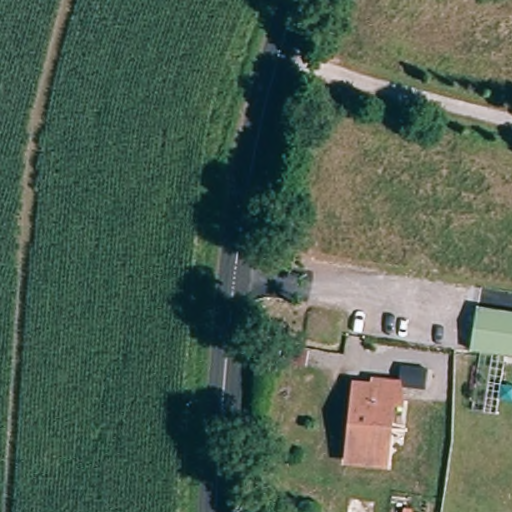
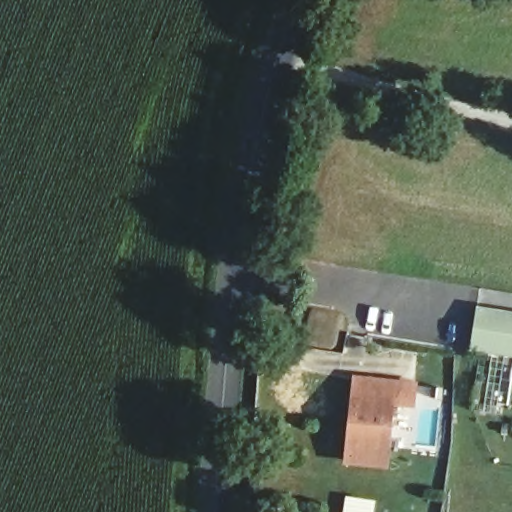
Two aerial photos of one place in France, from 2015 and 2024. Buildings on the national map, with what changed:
unchanged [(512,312),(512,356),(472,350),(479,306),(512,312)]
unchanged [(414,393),(394,391),(396,371),(416,373),(414,393)]
unchanged [(392,411),(385,469),(348,466),(356,402),(372,403),(373,390),(394,391),(401,410),(392,411)]

